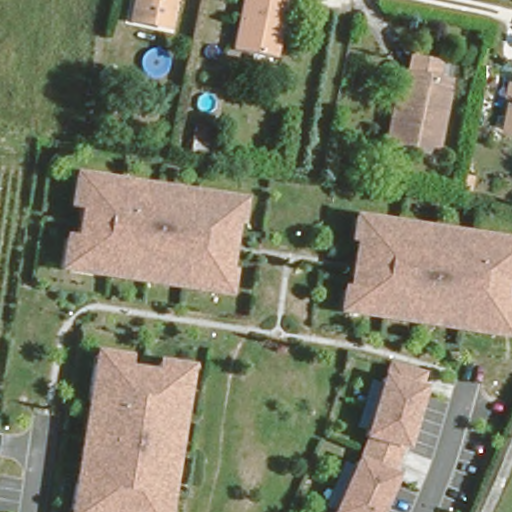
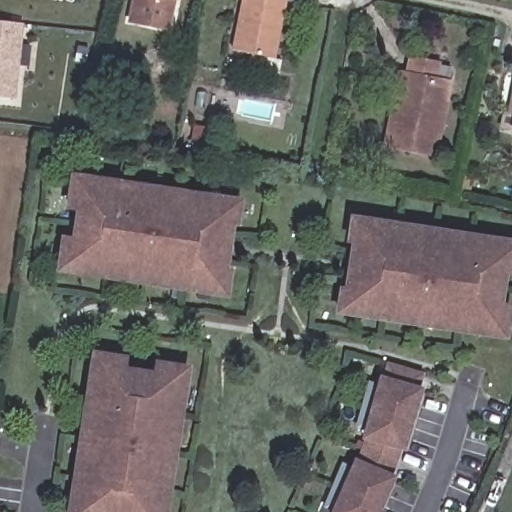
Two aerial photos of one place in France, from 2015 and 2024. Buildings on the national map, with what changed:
unchanged [(162,19),(125,11),(127,0),(166,0),(162,19)]
unchanged [(243,0),(287,0),(276,59),(233,50),(243,0)]
new [(24,24),(16,99),(0,97),(0,21),(24,24)]
unchanged [(446,57),(443,73),(455,76),(440,153),(391,144),(398,106),(406,65),(413,67),(416,51),(446,57)]
unchanged [(510,75),(512,75),(512,127),(508,126),(511,112),(502,111),(510,75)]
unchanged [(224,293),(189,288),(116,278),(78,272),(67,271),(72,241),(82,242),(87,211),(76,209),(81,179),(91,181),(129,186),(202,197),(237,202),(248,203),(245,225),(234,223),(229,222),(227,235),(240,237),(237,261),(224,258),(222,272),(227,272),(237,274),(234,295),(224,293)]
unchanged [(462,328),(389,318),(353,313),(343,312),(346,290),(357,292),(362,292),(363,280),(350,277),(354,254),(367,256),(369,243),(364,242),(353,241),(356,220),(367,221),(402,226),(475,237),(512,242),(512,272),(509,272),(504,304),(512,305),(512,322),(510,336),(500,334),(462,328)]
unchanged [(95,508),(94,512),(73,512),(73,510),(78,474),(84,437),(90,400),(95,361),(97,351),(127,356),(126,366),(157,371),(159,361),(189,366),(187,376),(181,415),(175,452),(169,488),(165,512),(107,512),(108,511),(95,508)]
unchanged [(338,503),(359,466),(367,470),(372,460),(374,462),(379,432),(376,430),(381,420),(372,416),(392,377),(401,382),(405,375),(408,377),(415,363),(443,378),(436,392),(439,393),(411,446),(408,444),(402,479),(405,481),(388,512),(344,512),(347,508),(338,503)]

